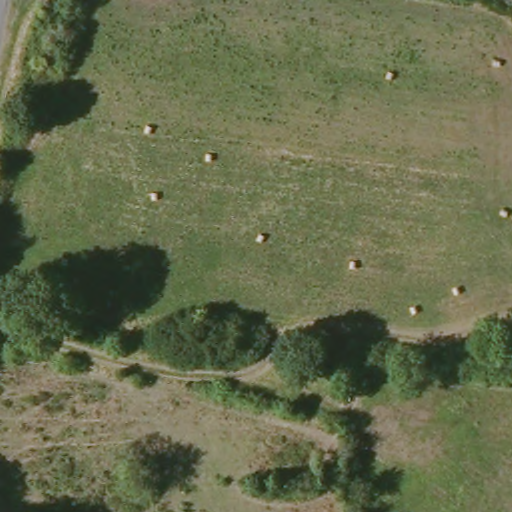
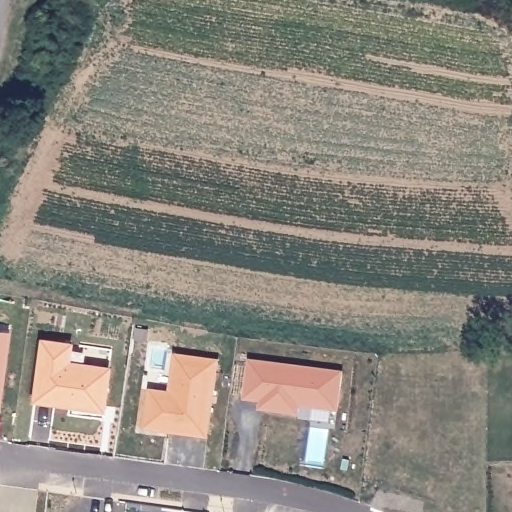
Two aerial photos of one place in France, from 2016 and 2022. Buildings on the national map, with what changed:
new [(0,401),(0,331),(9,332),(0,401)]
new [(70,344),(67,363),(108,367),(103,409),(33,400),(41,341),(70,344)]
new [(206,436),(145,428),(150,391),(170,393),(174,356),(216,361),(206,436)]
new [(250,359),(343,371),(340,413),(302,408),(301,417),(258,410),(259,403),(242,401),(250,359)]

